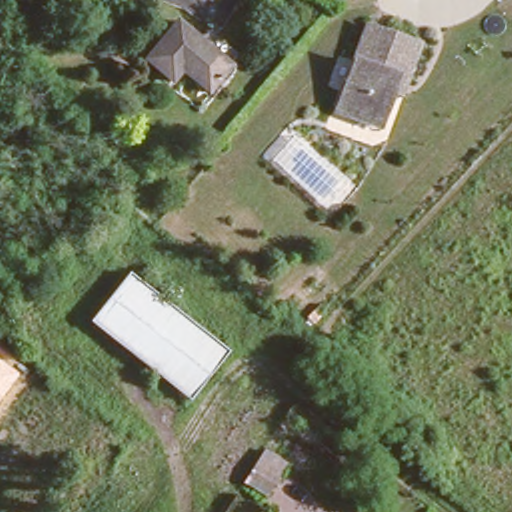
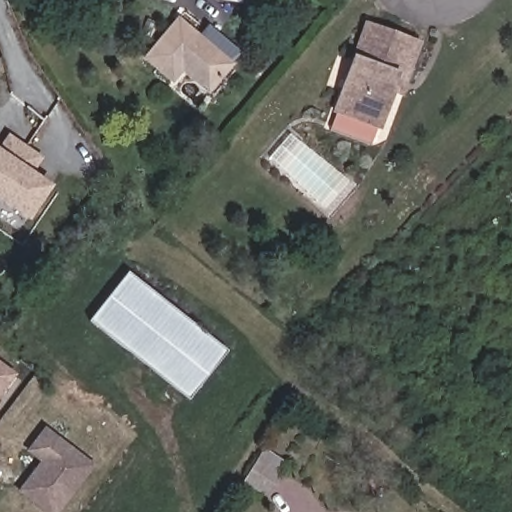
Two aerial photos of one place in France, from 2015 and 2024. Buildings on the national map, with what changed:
unchanged [(181,54),(171,66),(147,47),(177,8),(232,50),(211,77),(181,54)]
unchanged [(388,89),(378,124),(339,111),(363,30),(417,45),(407,82),(404,92),(388,89)]
new [(29,177),(47,190),(21,230),(0,216),(0,151),(9,139),(41,159),(29,177)]
unchanged [(163,375),(89,312),(92,309),(128,265),(203,326),(225,345),(192,385),(185,395),(163,375)]
unchanged [(0,396),(0,362),(16,374),(0,396)]
unchanged [(405,441),(418,425),(431,433),(419,451),(405,441)]
new [(45,427),(97,466),(61,512),(43,512),(18,492),(40,462),(27,451),(45,427)]
unchanged [(306,460),(303,463),(284,490),(262,475),(282,446),(283,444),(306,460)]

